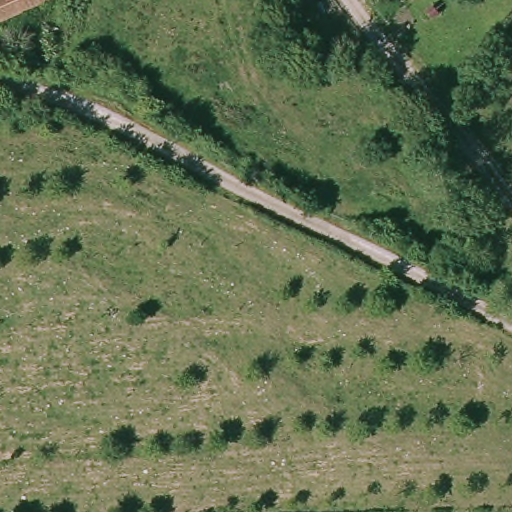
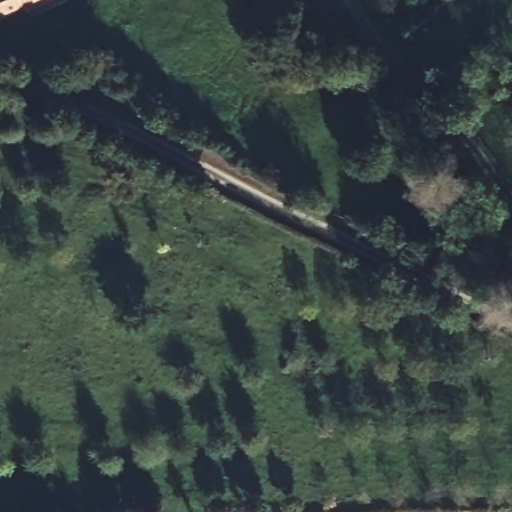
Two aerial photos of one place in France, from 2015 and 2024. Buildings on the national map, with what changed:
unchanged [(2,0),(59,0),(60,3),(0,29),(0,1),(2,0)]

